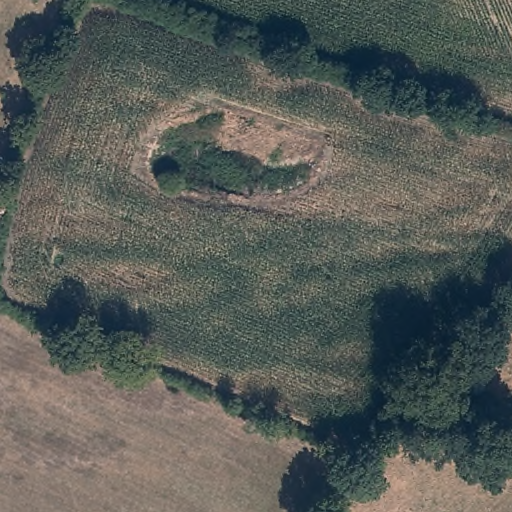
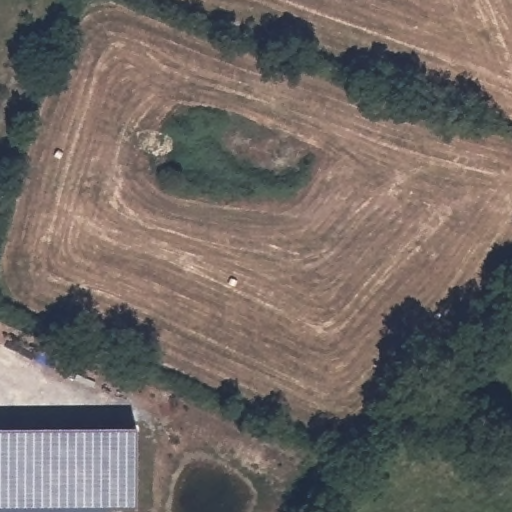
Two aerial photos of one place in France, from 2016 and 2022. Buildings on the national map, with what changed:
new [(136,428),(136,508),(0,510),(0,429),(136,428)]

